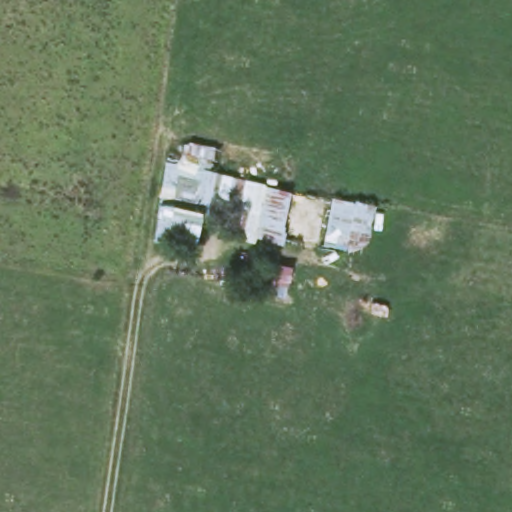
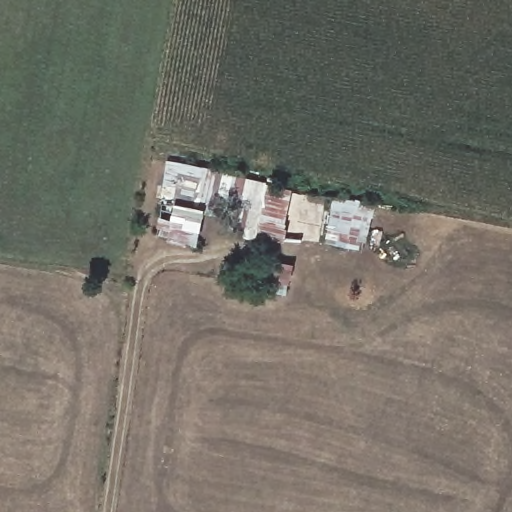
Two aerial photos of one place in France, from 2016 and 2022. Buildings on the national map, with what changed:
unchanged [(162,196),(171,145),(185,147),(186,137),(223,141),(221,166),(293,184),(286,243),(273,242),(273,234),(255,229),(256,214),(208,203),(202,241),(155,235),(162,196)]

